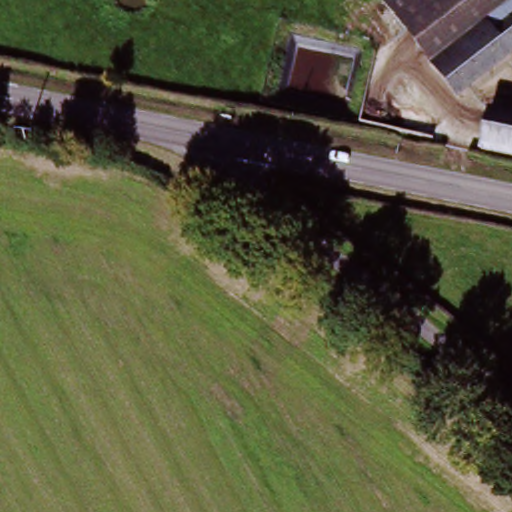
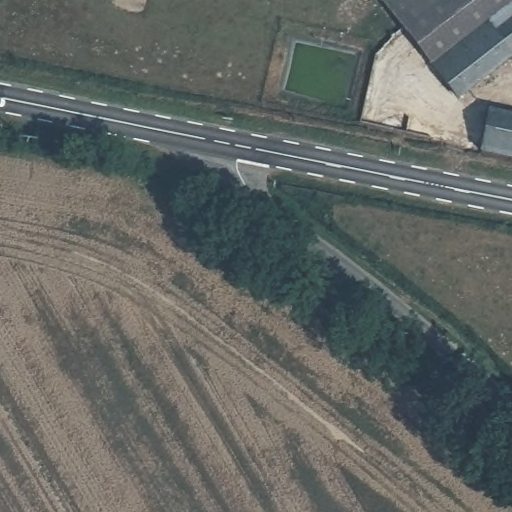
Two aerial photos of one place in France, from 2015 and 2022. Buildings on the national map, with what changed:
unchanged [(455,99),(381,4),(387,0),(512,0),(512,55),(455,99)]
unchanged [(486,117),(512,122),(512,155),(480,149),(486,117)]

